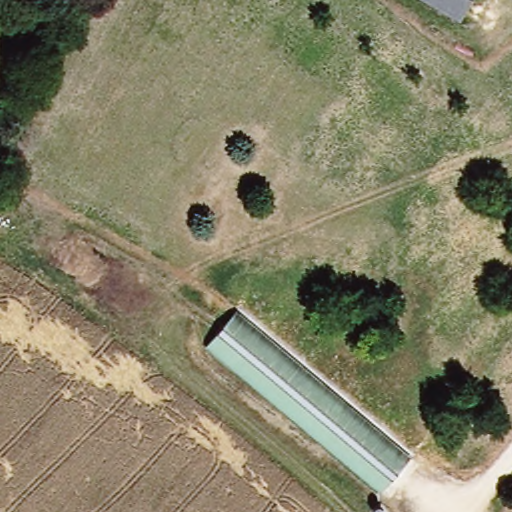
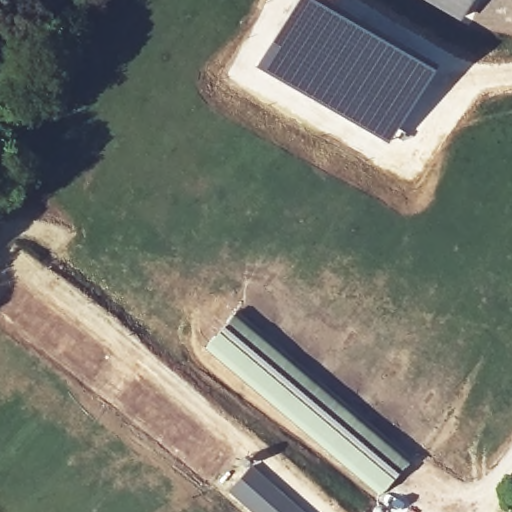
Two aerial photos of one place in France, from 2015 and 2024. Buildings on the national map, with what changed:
new [(293,0),(312,0),(432,69),(387,144),(255,68),(293,0)]
unchanged [(423,0),(470,0),(458,20),(423,0)]
new [(0,309),(0,296),(13,278),(112,353),(94,378),(0,309)]
unchanged [(234,316),(412,464),(383,499),(205,352),(234,316)]
new [(213,475),(116,395),(137,370),(233,450),(213,475)]
new [(250,512),(229,493),(252,467),(301,512),(250,512)]

